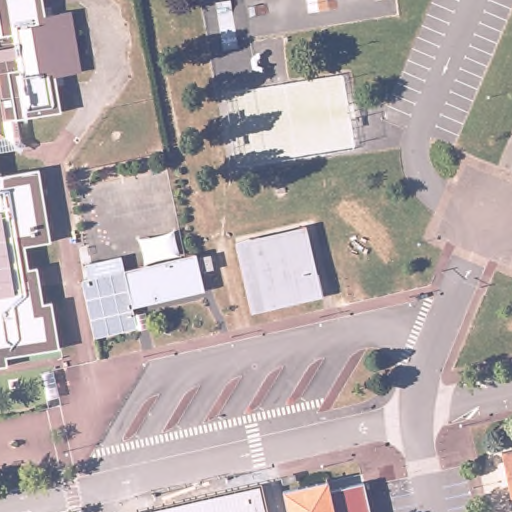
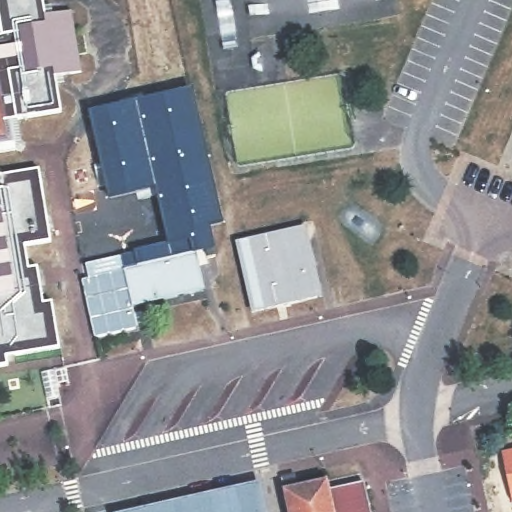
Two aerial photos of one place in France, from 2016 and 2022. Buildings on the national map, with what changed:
unchanged [(10,136),(3,91),(0,70),(0,33),(5,32),(0,2),(0,0),(53,0),(56,20),(84,16),(94,76),(68,80),(74,116),(28,124),(31,139),(23,152),(1,156),(5,179),(48,171),(59,241),(34,246),(38,272),(49,271),(54,305),(62,304),(69,349),(16,357),(17,366),(0,369),(0,138),(10,136)]
new [(133,251),(167,245),(155,188),(108,198),(89,112),(191,89),(223,224),(209,228),(214,248),(190,252),(179,255),(158,259),(142,263),(136,265),(133,251)]
unchanged [(3,91),(10,136),(0,138),(0,92),(3,91)]
unchanged [(311,226),(324,295),(261,307),(248,238),(311,226)]
unchanged [(190,252),(198,295),(134,309),(131,310),(123,267),(142,263),(158,259),(179,255),(190,252)]
unchanged [(122,257),(125,267),(123,267),(131,310),(134,309),(139,330),(94,339),(82,281),(90,279),(87,265),(122,257)]
new [(512,496),(500,499),(489,449),(512,445),(512,496)]
demolished [(499,454),(512,452),(512,504),(511,504),(499,454)]
unchanged [(329,472),(331,482),(363,475),(371,512),(290,512),(283,482),(329,472)]
unchanged [(268,512),(130,512),(262,484),(268,512)]

